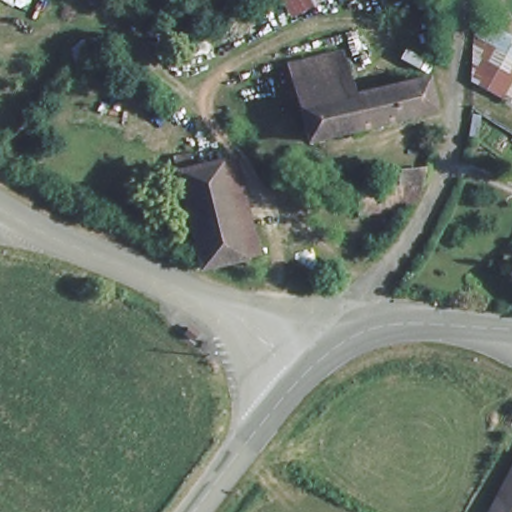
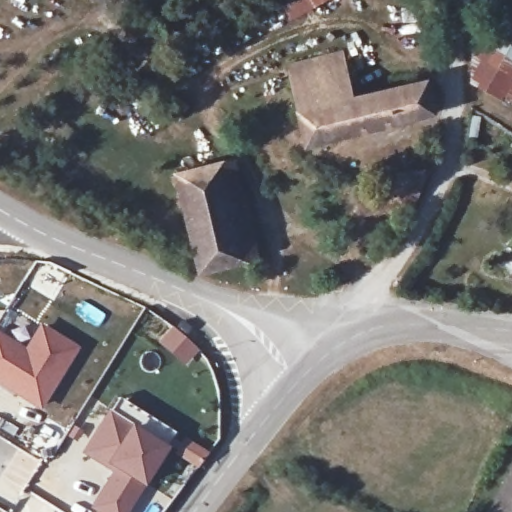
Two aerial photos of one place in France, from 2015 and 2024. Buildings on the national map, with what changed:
unchanged [(292,16),(284,0),(327,0),(292,16)]
unchanged [(467,76),(488,35),(512,51),(512,101),(467,76)]
unchanged [(308,140),(285,69),(337,52),(348,95),(425,74),(434,103),(308,140)]
unchanged [(195,270),(172,169),(238,155),(262,255),(195,270)]
unchanged [(413,177),(366,185),(362,165),(422,155),(413,177)]
unchanged [(508,276),(512,272),(512,280),(508,276)]
new [(0,333),(25,348),(40,323),(78,347),(40,410),(0,384),(0,333)]
new [(143,485),(126,512),(98,512),(90,507),(112,472),(82,451),(110,410),(120,396),(175,432),(165,448),(143,485)]
unchanged [(493,512),(490,510),(512,467),(512,512),(493,512)]

